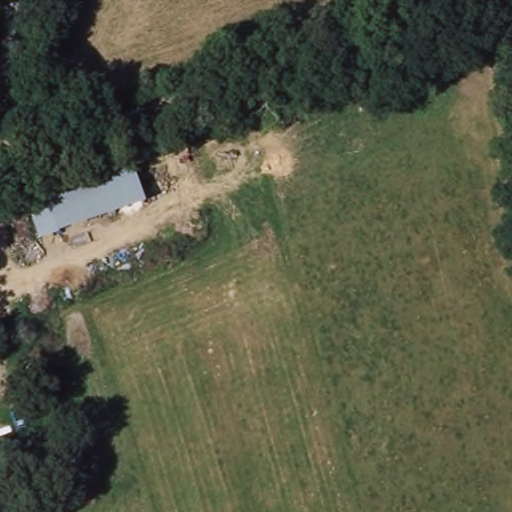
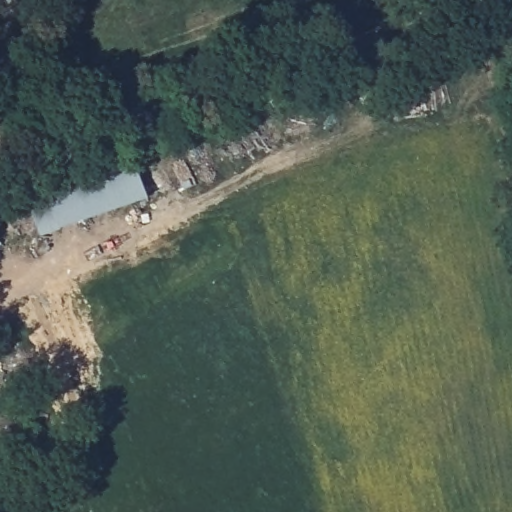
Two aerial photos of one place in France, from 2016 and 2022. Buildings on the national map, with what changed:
unchanged [(28,200),(134,165),(146,200),(40,238),(28,200)]

